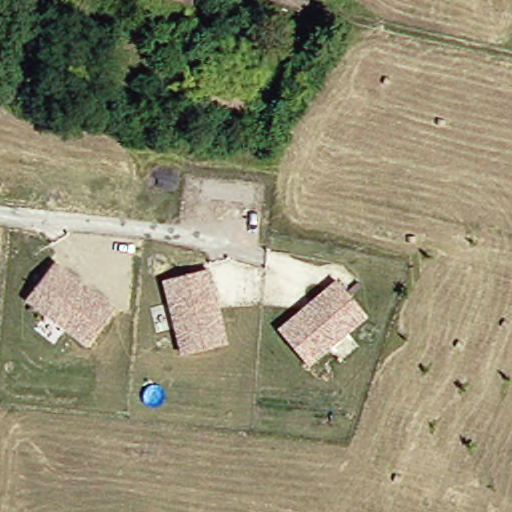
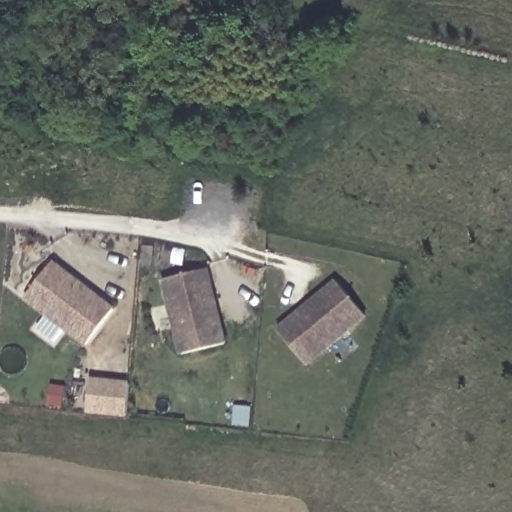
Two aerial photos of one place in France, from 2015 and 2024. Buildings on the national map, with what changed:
unchanged [(165,0),(171,0),(170,1),(165,0)]
unchanged [(171,0),(190,0),(188,7),(170,1),(171,0)]
unchanged [(111,307),(84,344),(23,297),(50,260),(111,307)]
unchanged [(226,342),(183,353),(163,278),(206,267),(226,342)]
unchanged [(363,315),(306,365),(278,332),(336,282),(363,315)]
new [(90,409),(93,376),(133,379),(129,414),(90,409)]

